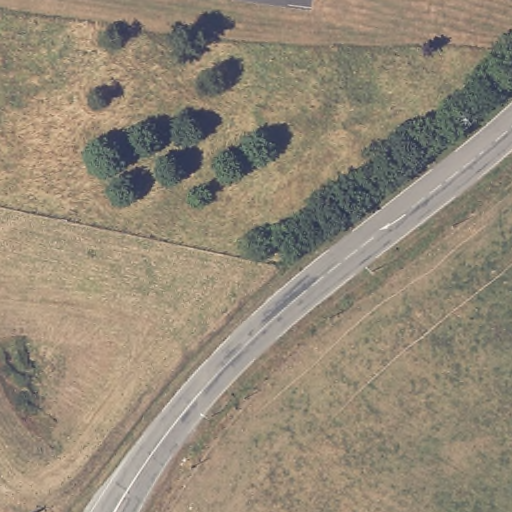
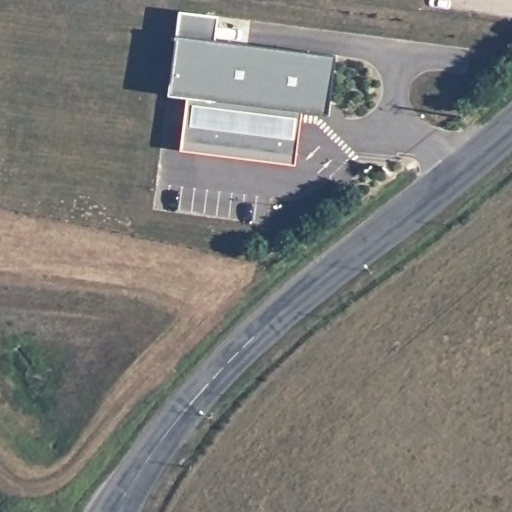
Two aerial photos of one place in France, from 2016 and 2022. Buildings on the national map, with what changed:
new [(178,11),(205,15),(203,39),(335,55),(328,115),(301,112),(185,97),(167,95),(175,35),(178,11)]
new [(185,97),(301,112),(294,165),(179,150),(185,97)]

